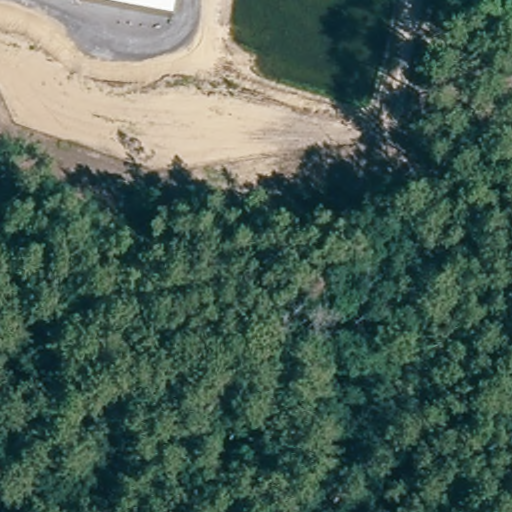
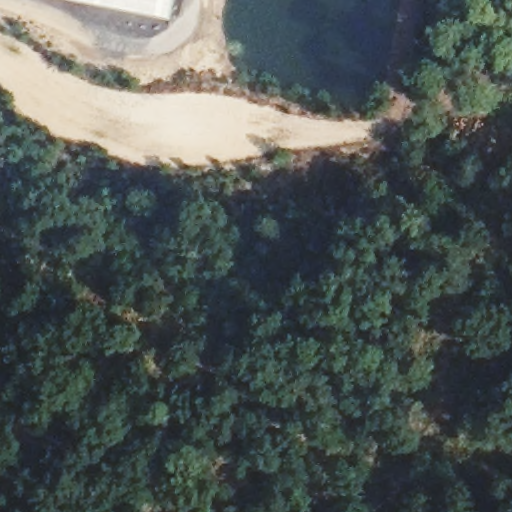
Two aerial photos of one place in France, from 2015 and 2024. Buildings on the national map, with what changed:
unchanged [(85,0),(173,0),(170,17),(85,0)]

